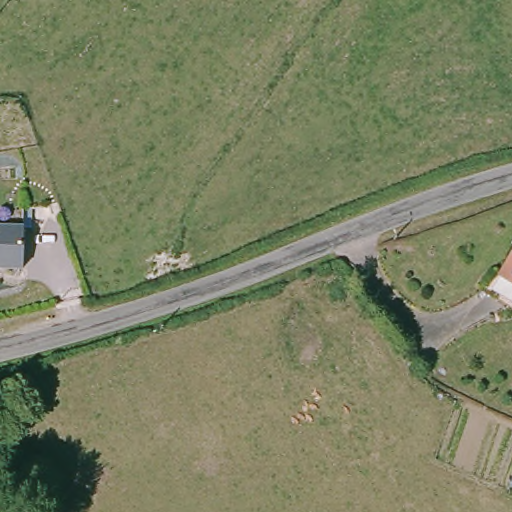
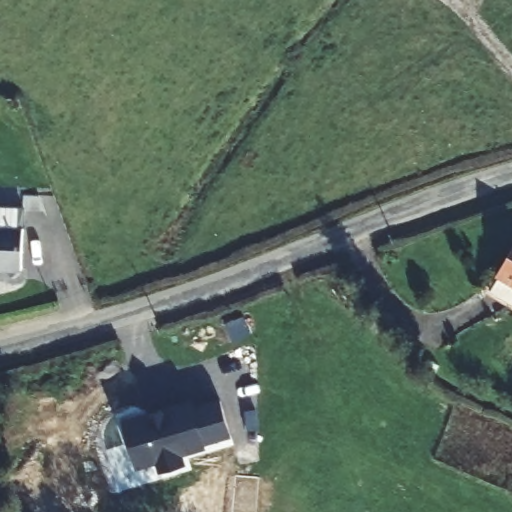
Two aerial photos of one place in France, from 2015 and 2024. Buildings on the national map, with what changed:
unchanged [(22,268),(0,268),(0,224),(24,225),(22,268)]
unchanged [(495,293),(512,262),(512,303),(495,293)]
new [(122,420),(193,400),(195,405),(220,399),(230,436),(205,443),(207,447),(183,455),(187,465),(160,473),(157,463),(137,469),(122,420)]

